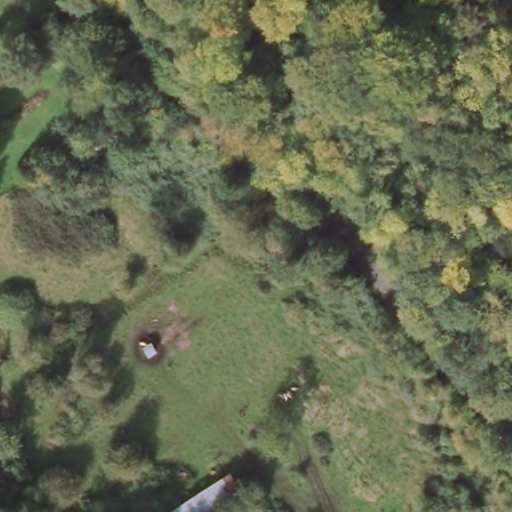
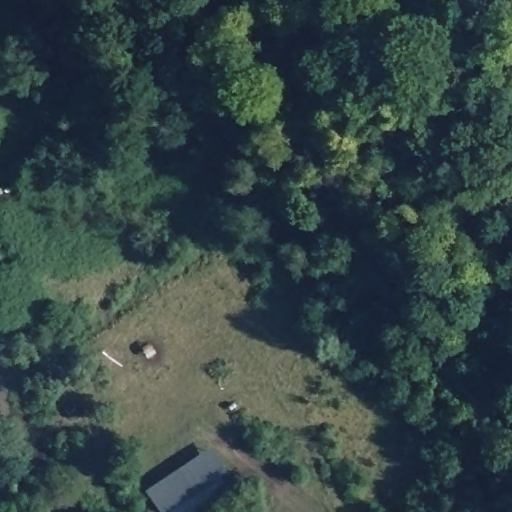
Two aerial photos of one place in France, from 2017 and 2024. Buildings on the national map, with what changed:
new [(213,451),(242,498),(220,512),(158,512),(145,491),(213,451)]

